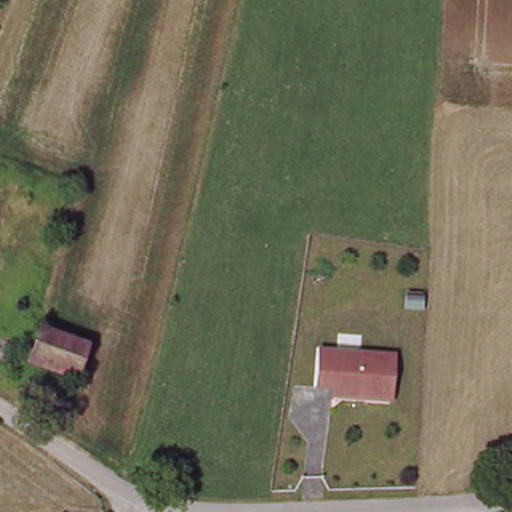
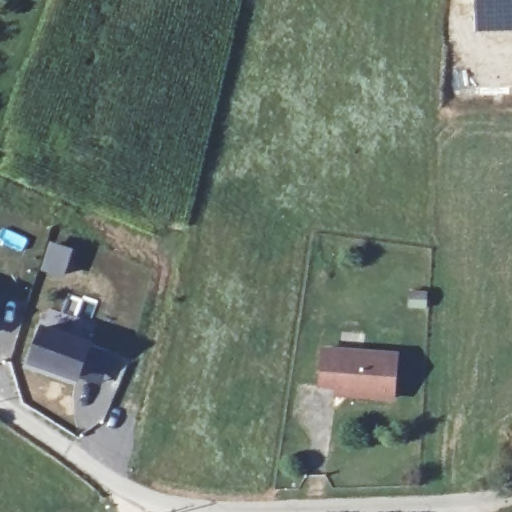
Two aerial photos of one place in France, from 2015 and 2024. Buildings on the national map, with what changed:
new [(512,29),(476,30),(475,0),(512,0),(512,29)]
unchanged [(86,368),(33,351),(43,323),(96,341),(86,368)]
unchanged [(402,354),(399,397),(370,394),(371,387),(326,382),(329,347),(402,354)]

